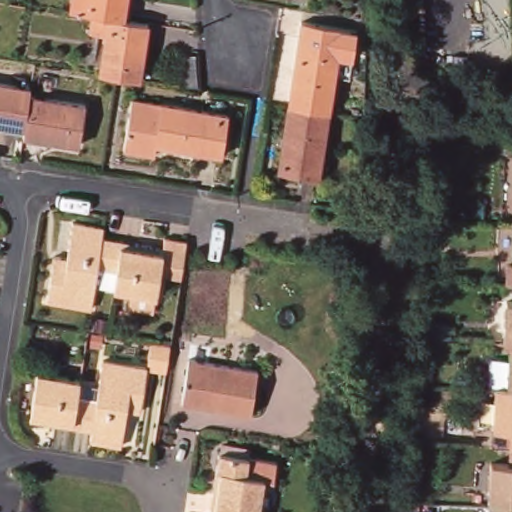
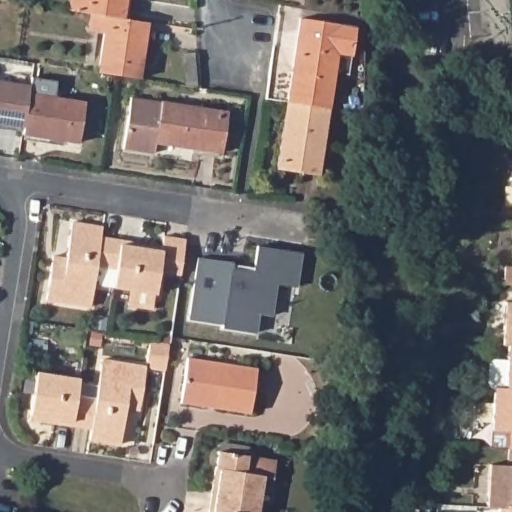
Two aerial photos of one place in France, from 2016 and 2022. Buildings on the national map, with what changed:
unchanged [(84,0),(126,0),(123,18),(90,13),(82,12),(84,0)]
unchanged [(90,13),(123,18),(149,22),(140,78),(111,73),(99,72),(105,31),(88,29),(90,13)]
unchanged [(334,70),(328,107),(286,100),(299,16),(354,24),(350,52),(348,72),(334,70)]
unchanged [(0,82),(31,86),(30,93),(25,127),(0,123),(0,82)]
unchanged [(25,127),(30,93),(87,102),(79,144),(24,136),(25,127)]
unchanged [(128,99),(225,114),(219,154),(152,144),(151,156),(120,151),(128,99)]
unchanged [(286,100),(328,107),(315,176),(275,168),(286,100)]
unchanged [(48,258),(63,260),(69,224),(99,230),(98,238),(116,241),(112,270),(93,268),(87,308),(42,301),(48,258)]
unchanged [(112,270),(116,241),(159,247),(160,238),(182,241),(181,248),(177,276),(155,273),(151,295),(109,289),(112,270)]
new [(235,265),(234,267),(256,270),(259,248),(302,255),(296,289),(276,286),(271,318),(258,316),(255,335),(223,330),(224,326),(190,321),(200,259),(235,265)]
unchanged [(507,271),(512,271),(512,291),(505,290),(507,271)]
unchanged [(506,305),(512,306),(512,350),(510,349),(503,349),(506,305)]
unchanged [(151,342),(171,345),(169,361),(167,371),(151,369),(151,364),(149,364),(151,342)]
unchanged [(510,349),(512,350),(512,394),(507,394),(510,349)]
unchanged [(184,360),(222,366),(254,371),(247,416),(177,404),(184,360)]
unchanged [(77,400),(97,403),(103,362),(147,370),(142,413),(127,411),(121,448),(92,442),(93,432),(72,429),(77,400)]
unchanged [(30,422),(37,375),(80,382),(77,400),(72,429),(30,422)]
unchanged [(495,393),(507,394),(512,394),(512,451),(509,451),(510,436),(492,434),(495,393)]
unchanged [(490,467),(508,468),(509,451),(512,451),(512,511),(500,510),(488,509),(490,467)]
unchanged [(248,459),(245,475),(264,478),(258,512),(209,512),(218,454),(248,459)]
unchanged [(417,505),(417,512),(404,512),(404,504),(417,505)]
unchanged [(512,511),(512,512),(500,512),(500,510),(512,511)]

